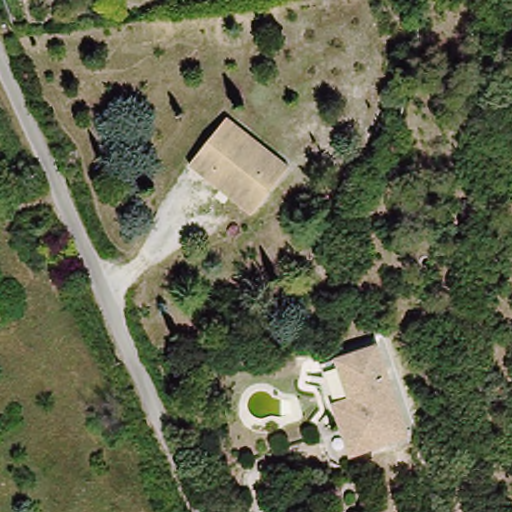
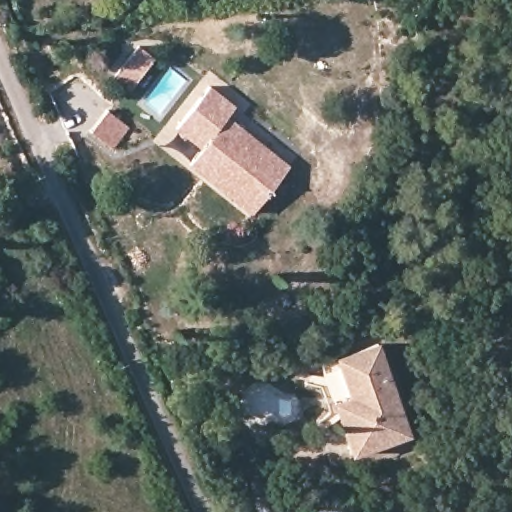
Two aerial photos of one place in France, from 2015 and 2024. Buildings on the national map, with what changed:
new [(223,117),(200,147),(176,129),(208,86),(235,106),(227,120),(223,117)]
new [(108,109),(128,128),(110,148),(90,130),(108,109)]
unchanged [(205,175),(187,162),(223,117),(285,164),(259,198),(250,209),(205,175)]
unchanged [(412,433),(355,454),(335,399),(320,362),(378,341),(412,433)]

